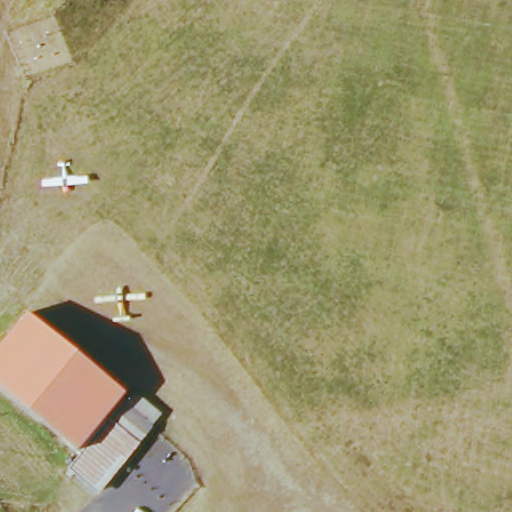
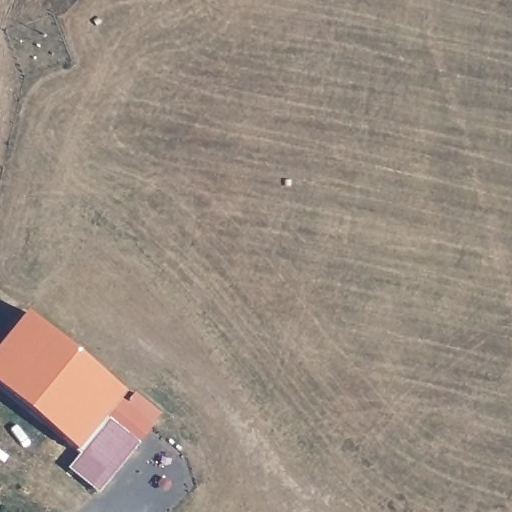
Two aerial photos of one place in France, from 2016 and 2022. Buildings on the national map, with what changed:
unchanged [(81,454),(0,390),(0,347),(26,317),(124,398),(81,454)]
unchanged [(98,493),(70,469),(81,454),(124,398),(129,391),(160,417),(152,426),(98,493)]

